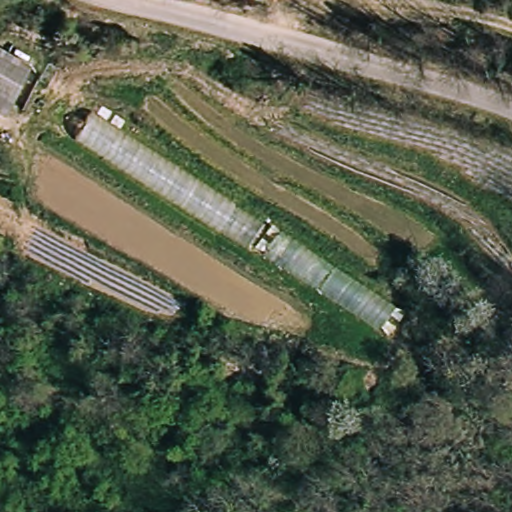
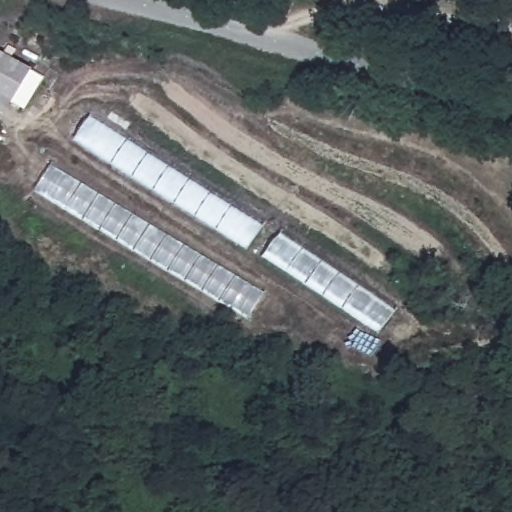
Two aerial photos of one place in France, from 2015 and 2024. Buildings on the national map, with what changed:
unchanged [(0,47),(33,65),(12,103),(0,96),(0,47)]
unchanged [(64,136),(80,110),(263,227),(246,252),(64,136)]
new [(51,163),(266,292),(248,320),(33,192),(51,163)]
unchanged [(262,259),(279,234),(404,314),(386,339),(262,259)]

